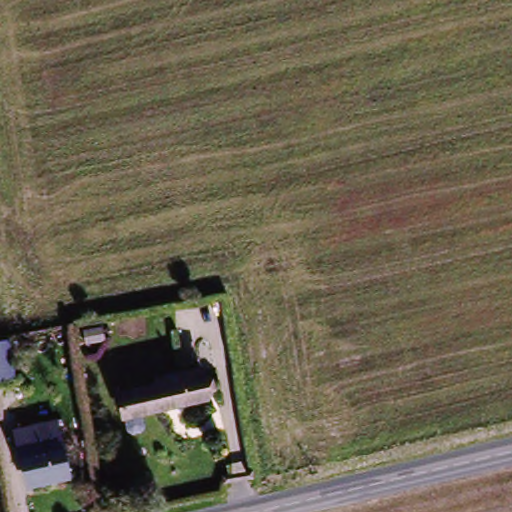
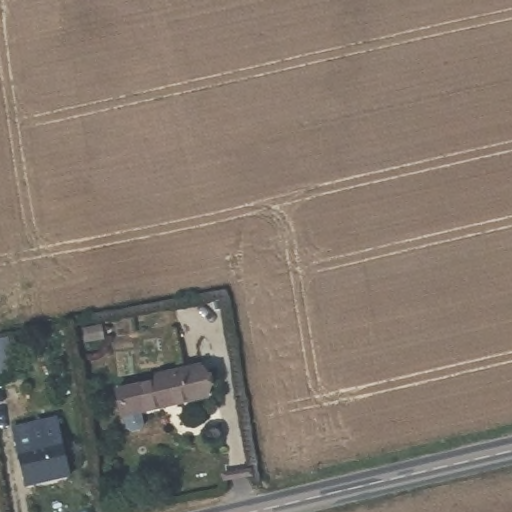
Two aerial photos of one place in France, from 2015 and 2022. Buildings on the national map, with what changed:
unchanged [(152,389),(151,378),(198,368),(205,408),(120,422),(115,394),(152,389)]
unchanged [(68,428),(78,485),(35,492),(25,436),(68,428)]

